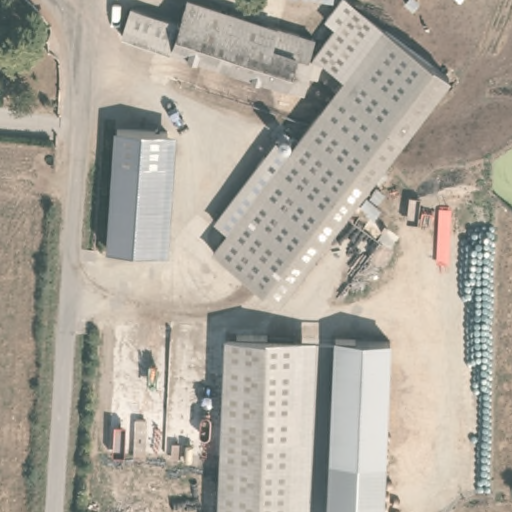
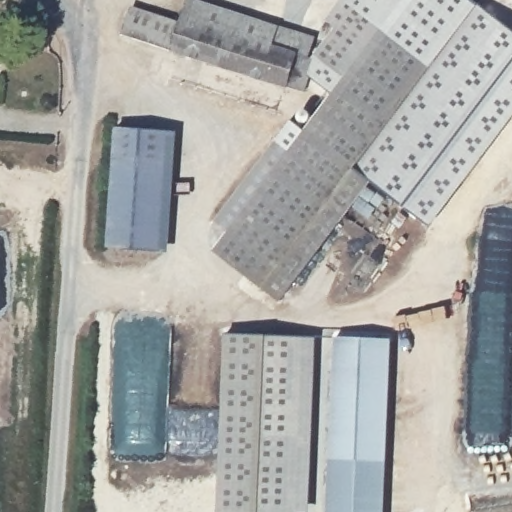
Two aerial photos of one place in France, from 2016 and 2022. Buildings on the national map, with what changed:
unchanged [(179,22),(186,0),(194,0),(315,39),(298,92),(120,37),(130,7),(179,22)]
unchanged [(322,0),(329,0),(329,1),(322,0)]
new [(372,182),(450,78),(352,4),(334,28),(322,19),(336,0),(472,0),(512,31),(512,118),(429,227),(372,182)]
unchanged [(342,79),(312,57),(352,4),(450,78),(281,303),(212,252),(226,232),(264,182),(287,152),(342,79)]
unchanged [(117,159),(119,127),(170,132),(167,162),(117,159)]
unchanged [(226,232),(213,222),(273,142),(287,152),(264,182),(226,232)]
unchanged [(117,159),(167,162),(161,252),(110,249),(117,159)]
unchanged [(315,339),(308,512),(217,512),(224,336),(315,339)]
unchanged [(333,338),(392,341),(385,512),(326,512),(328,462),(333,338)]

